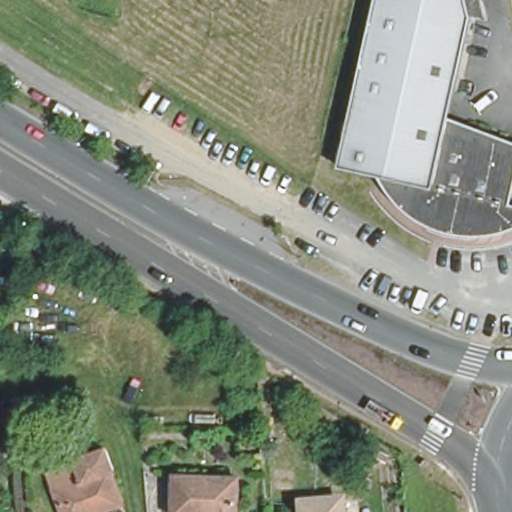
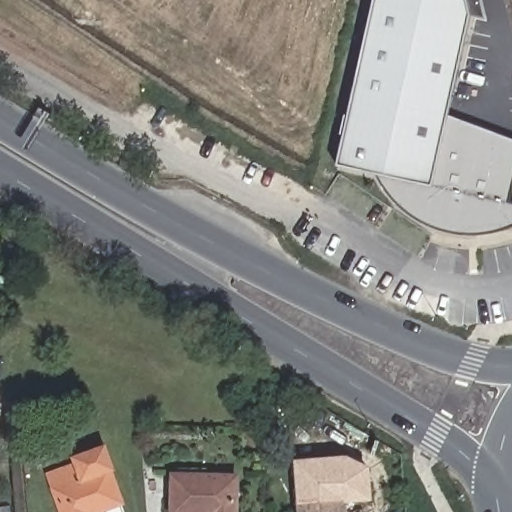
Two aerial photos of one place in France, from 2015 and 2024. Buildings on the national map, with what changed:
unchanged [(503,228),(492,232),(482,234),(471,236),(461,236),(450,235),(439,233),(429,231),(419,227),(409,222),(400,216),(391,210),(384,202),(377,194),(370,186),(365,176),(327,168),(365,0),(471,0),(477,22),(462,18),(440,118),(512,146),(512,160),(502,205),(512,207),(512,224),(503,228)]
unchanged [(72,461),(105,448),(123,503),(98,512),(66,512),(53,473),(74,466),(72,461)]
new [(295,461),(346,456),(371,467),(373,501),(350,502),(349,497),(298,501),(295,461)]
unchanged [(175,512),(176,480),(237,483),(236,512),(175,512)]
unchanged [(349,497),(351,512),(299,512),(298,501),(349,497)]

